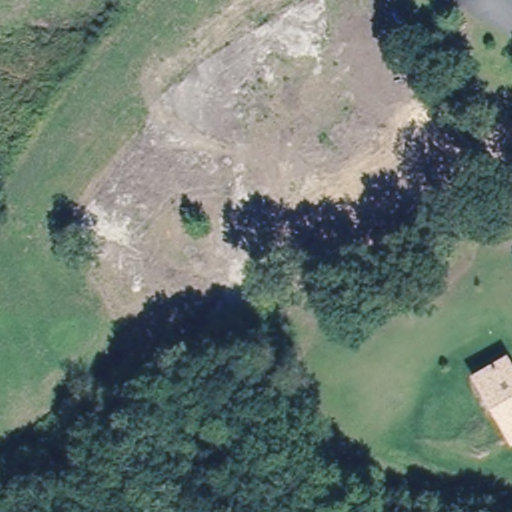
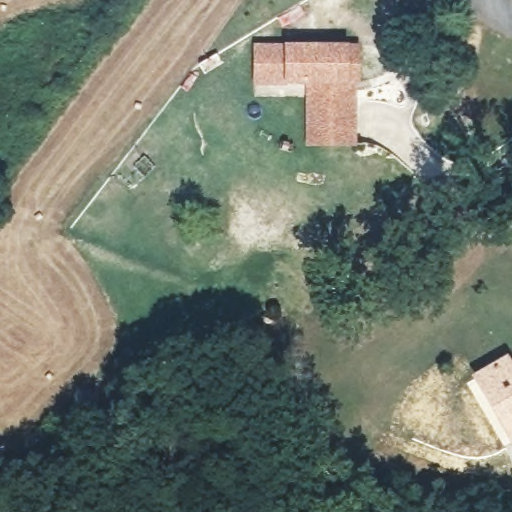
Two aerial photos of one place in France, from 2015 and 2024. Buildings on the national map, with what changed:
new [(348,138),(320,137),(313,137),(314,76),(275,75),(261,75),(261,40),(275,40),(361,42),(361,44),(359,44),(359,75),(361,75),(361,77),(356,77),(356,106),(355,138),(348,138)]
unchanged [(477,372),(511,356),(512,359),(512,437),(508,439),(486,391),(477,372)]

